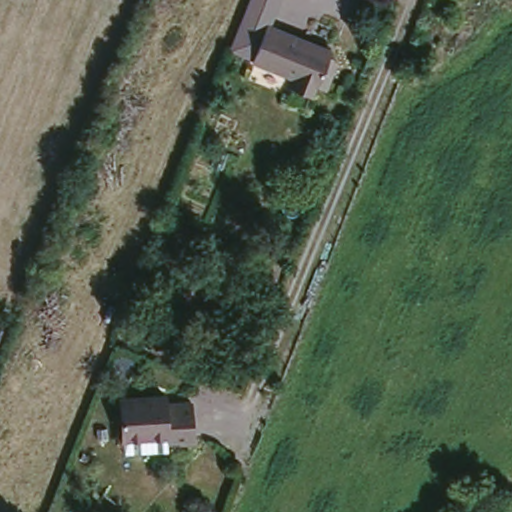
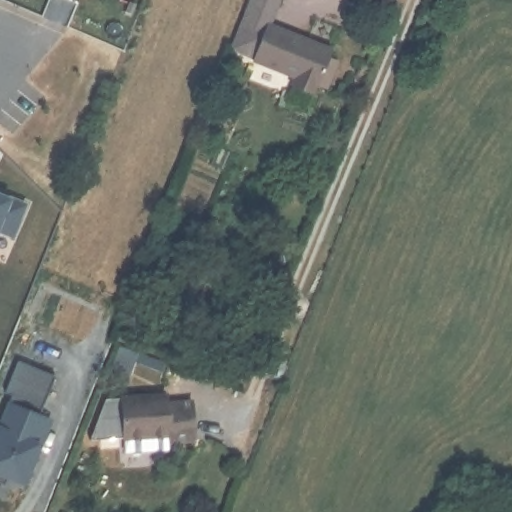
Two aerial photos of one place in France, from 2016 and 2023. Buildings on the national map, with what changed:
new [(248,0),(282,0),(272,26),(267,25),(252,63),(227,51),(248,0)]
unchanged [(267,25),(333,50),(318,88),(315,86),(311,96),(292,89),(296,79),(252,63),(267,25)]
new [(25,205),(10,241),(0,237),(0,196),(11,200),(25,205)]
new [(38,414),(51,420),(25,487),(7,480),(4,488),(0,487),(0,414),(4,402),(17,363),(52,377),(38,414)]
unchanged [(162,395),(163,402),(172,401),(191,401),(192,445),(167,446),(166,438),(122,439),(120,395),(162,395)]

